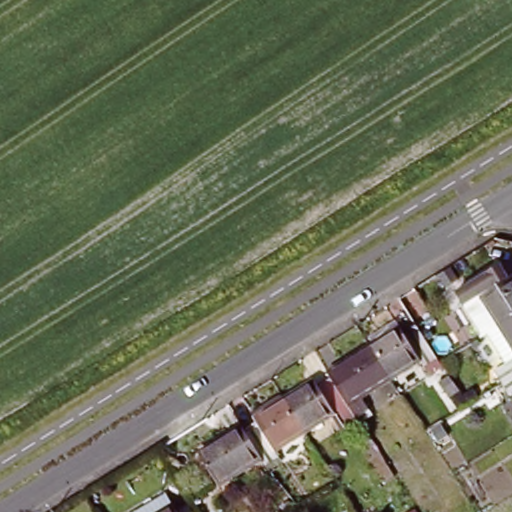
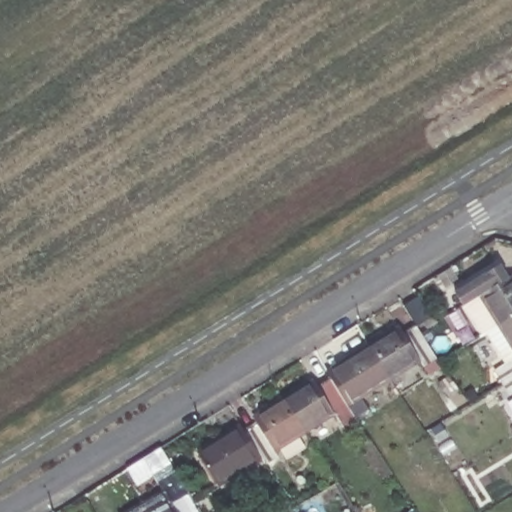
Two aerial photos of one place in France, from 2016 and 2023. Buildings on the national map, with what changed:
unchanged [(455,311),(447,299),(490,272),(498,285),(503,282),(512,296),(512,318),(488,333),(470,303),(455,311)]
unchanged [(507,362),(488,333),(512,318),(512,376),(492,390),(483,377),(507,362)]
unchanged [(397,337),(400,342),(413,334),(433,366),(420,374),(417,369),(387,388),(367,356),(397,337)]
unchanged [(325,382),(367,356),(387,388),(345,414),(328,388),(325,382)]
unchanged [(498,402),(492,390),(512,376),(512,409),(505,398),(498,402)]
unchanged [(349,421),(335,429),(332,423),(302,441),(282,409),(312,391),(315,396),(328,388),(345,414),(349,421)]
unchanged [(243,441),(255,434),(251,428),(282,409),(302,441),(271,461),(275,467),(264,474),(260,468),(243,441)]
unchanged [(260,468),(215,495),(195,463),(240,435),(243,441),(260,468)]
unchanged [(168,505),(173,512),(157,512),(168,505)]
unchanged [(415,510),(416,512),(410,512),(415,510)]

